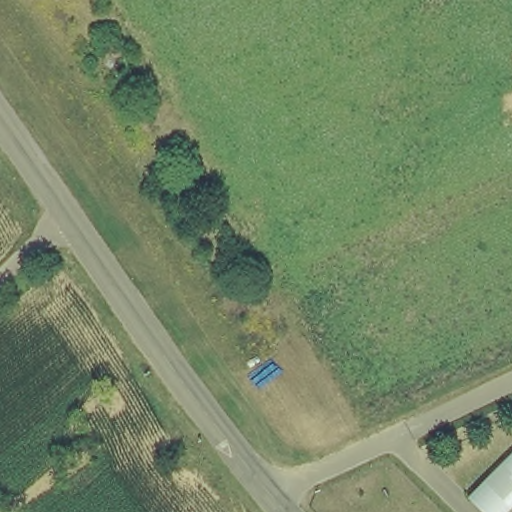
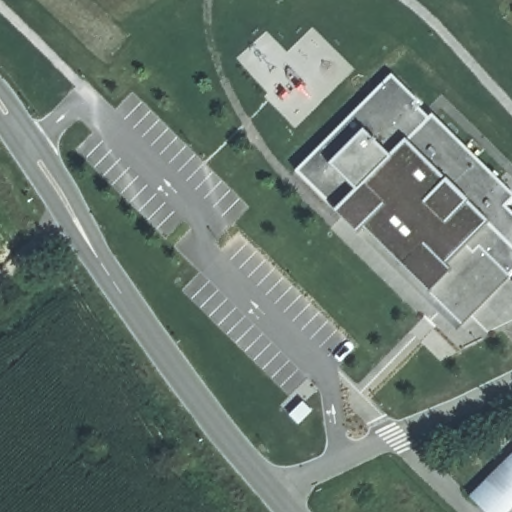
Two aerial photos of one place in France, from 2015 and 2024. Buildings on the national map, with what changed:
new [(420,102),(410,111),(423,125),(433,115),(509,190),(500,200),(512,212),(512,276),(511,277),(509,278),(497,266),(468,296),(439,303),(346,211),(341,216),(337,212),(296,172),(392,75),(420,102)]
new [(337,212),(341,216),(346,211),(439,303),(468,296),(497,266),(509,278),(511,277),(457,332),(336,213),(337,212)]
unchanged [(476,496),(512,461),(512,512),(491,512),(476,496)]

